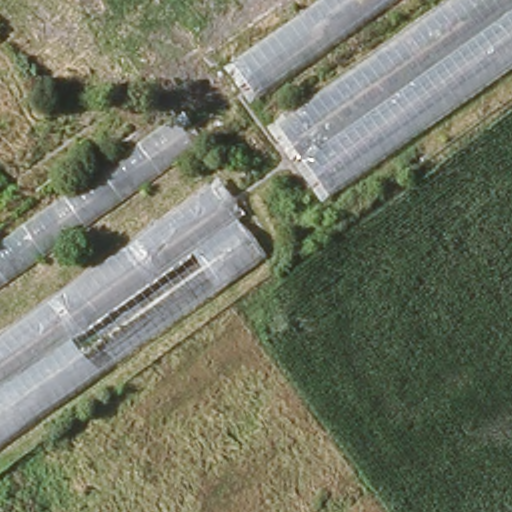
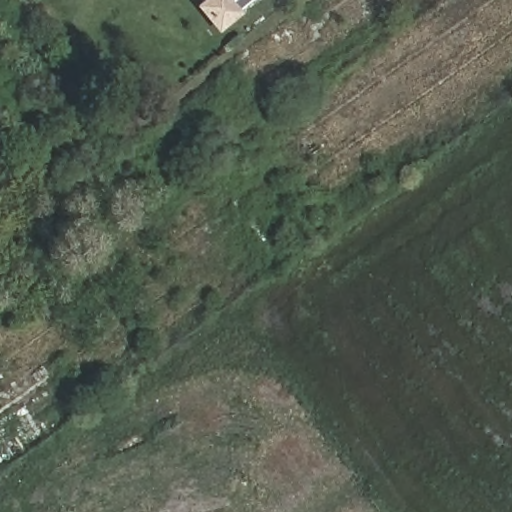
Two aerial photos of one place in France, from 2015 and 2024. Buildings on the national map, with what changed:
new [(197,6),(205,0),(231,0),(243,14),(219,34),(197,6)]
demolished [(258,104),(201,29),(243,0),(302,0),(330,44),(258,104)]
demolished [(447,0),(512,0),(512,69),(324,202),(268,125),(447,0)]
demolished [(302,0),(391,0),(330,44),(302,0)]
demolished [(0,445),(0,241),(216,84),(241,126),(191,162),(212,188),(262,257),(0,445)]

